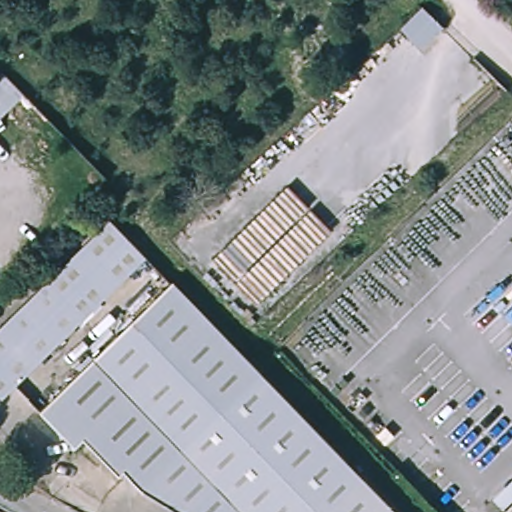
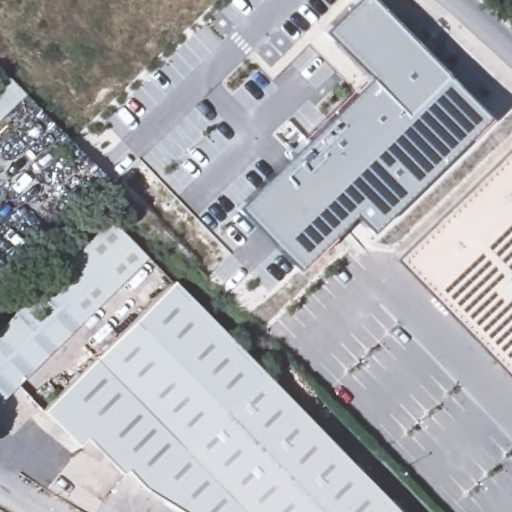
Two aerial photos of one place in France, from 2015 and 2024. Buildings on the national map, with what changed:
new [(487,115),(368,230),(353,212),(295,270),(233,207),(369,77),(322,30),(354,0),(373,0),(487,115)]
unchanged [(17,98),(0,114),(0,81),(17,98)]
new [(512,149),(512,380),(397,260),(512,149)]
demolished [(336,232),(266,300),(221,257),(290,189),(336,232)]
unchanged [(2,401),(0,399),(0,328),(110,219),(147,255),(2,401)]
unchanged [(91,440),(83,447),(48,412),(175,285),(404,512),(189,512),(126,475),(91,440)]
demolished [(506,512),(508,510),(512,506),(512,512),(506,512)]

